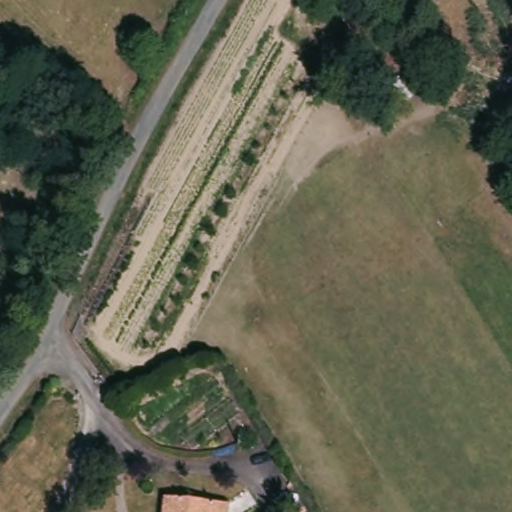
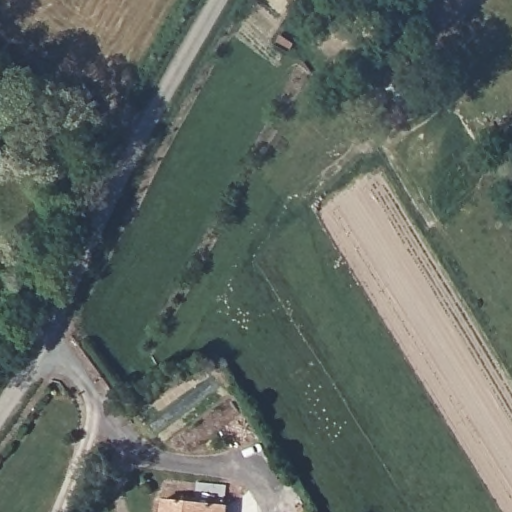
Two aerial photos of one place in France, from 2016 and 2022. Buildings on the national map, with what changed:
unchanged [(165,499),(226,504),(225,512),(163,512),(165,499)]

